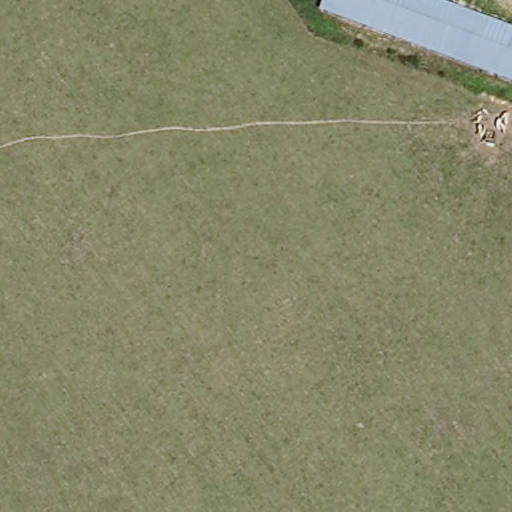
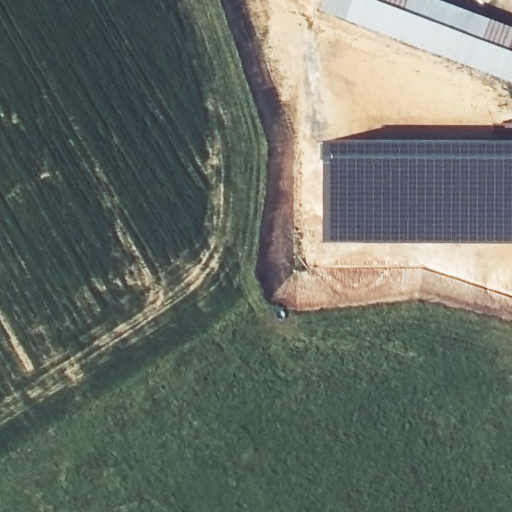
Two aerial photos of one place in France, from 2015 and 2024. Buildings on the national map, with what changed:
unchanged [(437,0),(512,28),(512,81),(323,10),(326,0),(437,0)]
new [(430,137),(512,138),(512,243),(322,242),(320,139),(430,137)]

